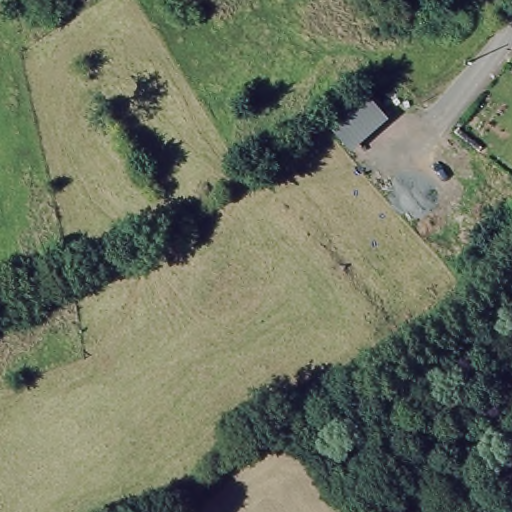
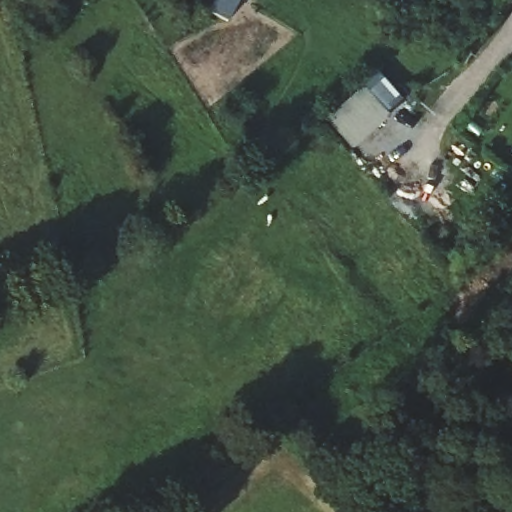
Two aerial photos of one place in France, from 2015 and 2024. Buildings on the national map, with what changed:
new [(240,0),(227,24),(207,14),(214,0),(240,0)]
unchanged [(375,73),(402,100),(347,143),(323,114),(375,73)]

